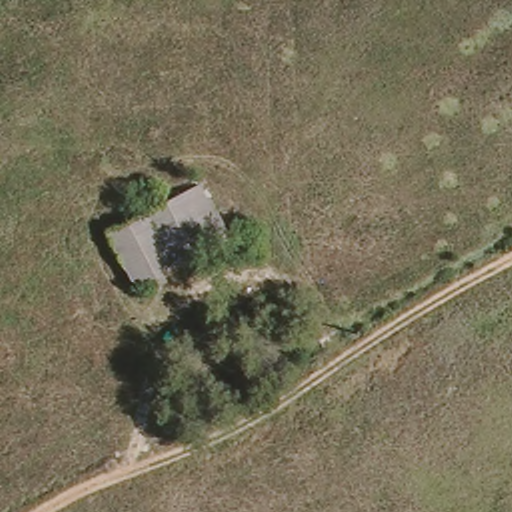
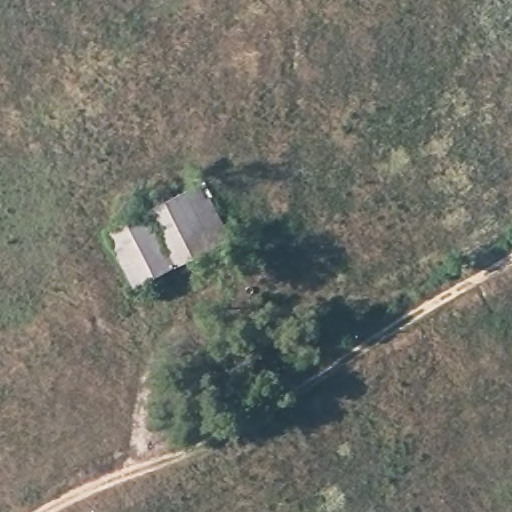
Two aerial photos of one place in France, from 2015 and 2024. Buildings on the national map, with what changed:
unchanged [(110,230),(200,186),(230,240),(139,286),(110,230)]

